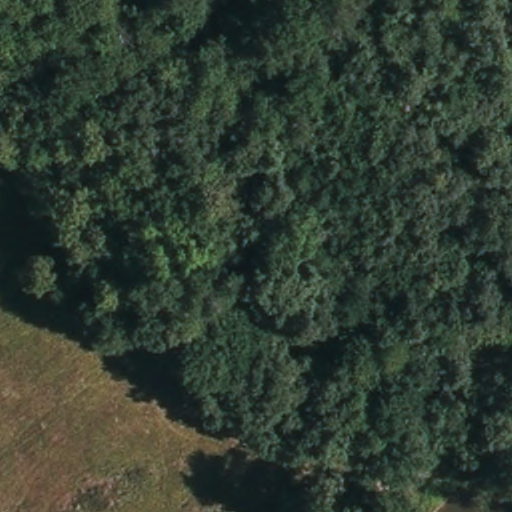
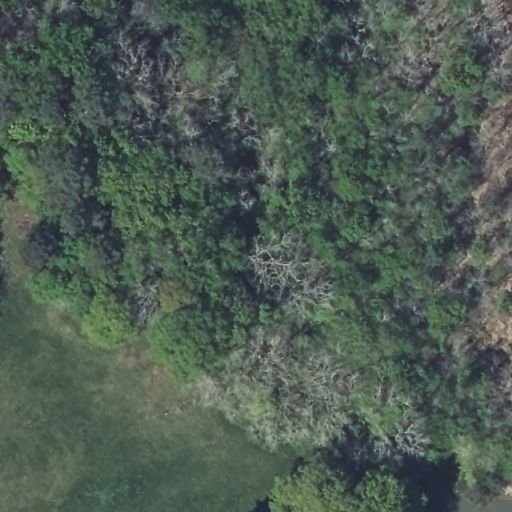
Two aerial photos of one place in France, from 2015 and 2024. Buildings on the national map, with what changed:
[]

